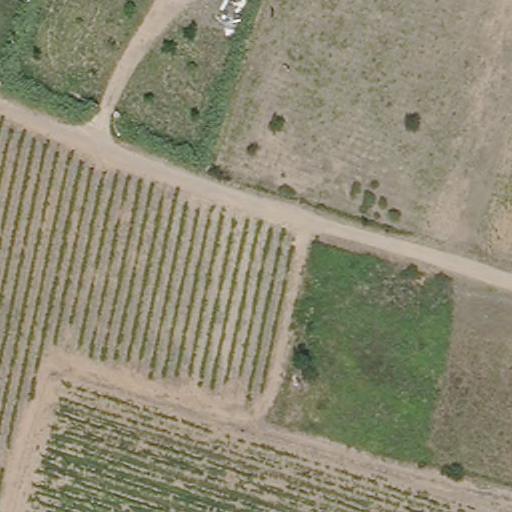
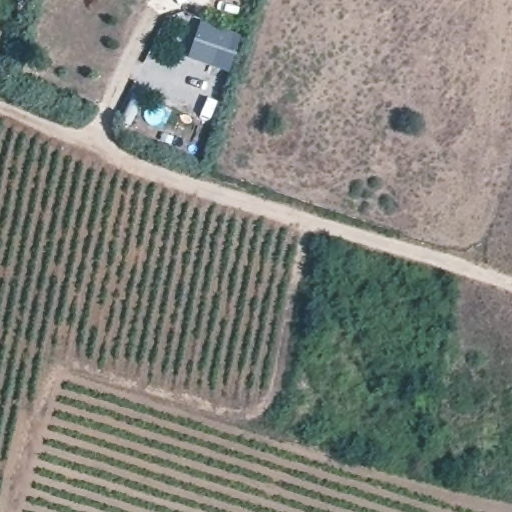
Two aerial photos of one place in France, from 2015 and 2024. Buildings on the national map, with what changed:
new [(241,35),(229,71),(188,57),(201,21),(241,35)]

